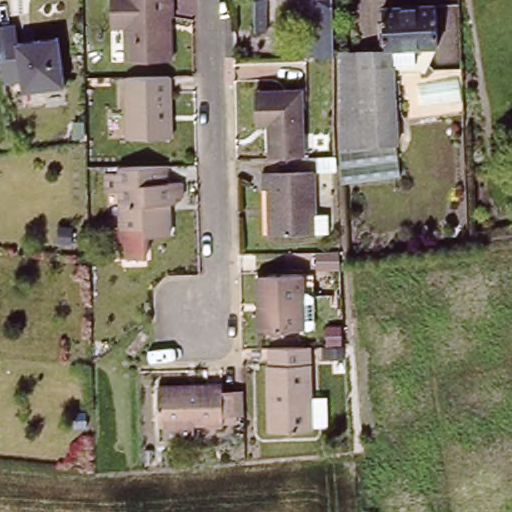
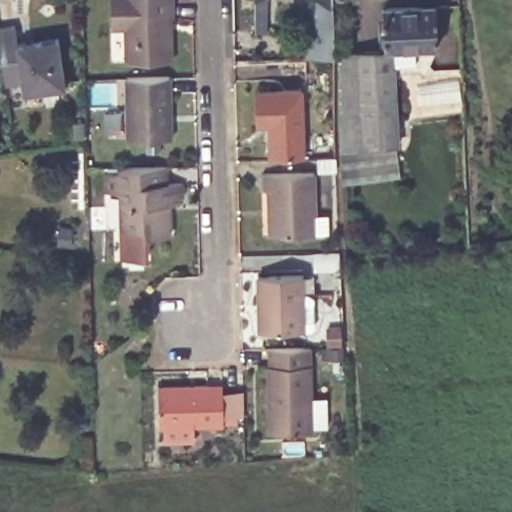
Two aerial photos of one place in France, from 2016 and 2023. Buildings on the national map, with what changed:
unchanged [(170,21),(170,34),(170,64),(124,66),(123,31),(110,31),(110,0),(171,0),(171,21),(170,21)]
unchanged [(254,31),(255,0),(267,0),(265,32),(254,31)]
unchanged [(310,55),(309,26),(317,26),(317,3),(332,2),(334,54),(310,55)]
unchanged [(428,67),(397,68),(400,140),(340,145),(337,48),(385,45),(383,6),(437,3),(440,42),(428,67)]
unchanged [(10,28),(13,46),(54,40),(61,89),(19,95),(17,83),(0,86),(0,83),(0,29),(10,28)]
unchanged [(170,80),(172,142),(127,144),(127,81),(170,80)]
unchanged [(267,129),(254,129),(253,95),(299,94),(301,159),(268,160),(267,129)]
unchanged [(400,140),(402,176),(343,180),(340,145),(400,140)]
unchanged [(168,244),(144,245),(144,237),(120,238),(120,202),(108,202),(103,202),(102,184),(107,184),(119,184),(119,177),(165,175),(165,193),(180,193),(181,207),(172,208),(172,214),(167,214),(167,223),(168,244)]
unchanged [(312,240),(267,242),(267,196),(262,196),(260,181),(310,179),(312,240)]
unchanged [(260,310),(259,283),(300,282),(302,338),(268,339),(261,339),(260,310)]
unchanged [(309,354),(310,437),(268,438),(266,373),(269,373),(268,356),(309,354)]
unchanged [(222,394),(242,394),(242,417),(222,417),(223,431),(158,431),(157,392),(222,391),(222,394)]

